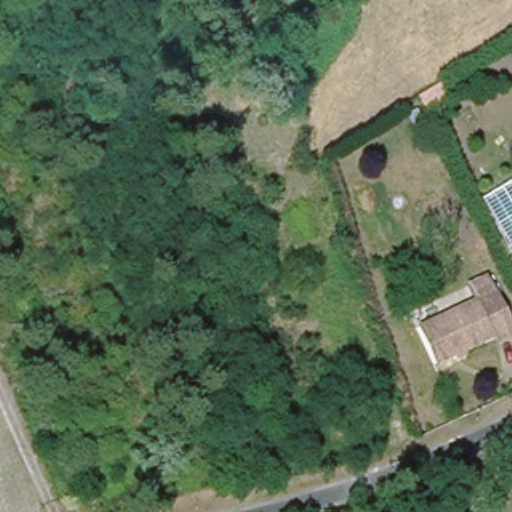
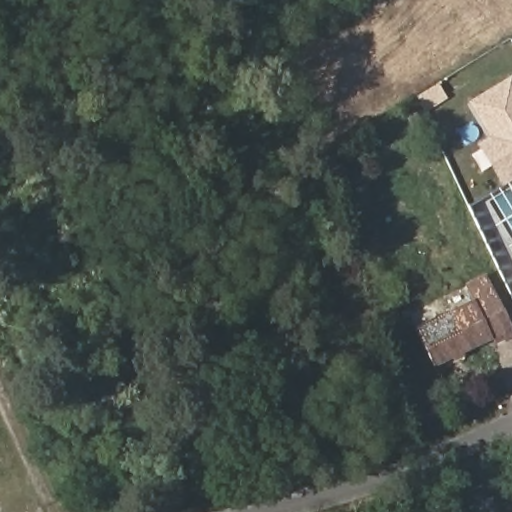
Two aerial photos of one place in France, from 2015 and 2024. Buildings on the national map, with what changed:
new [(509,75),(512,79),(512,192),(506,182),(500,186),(474,142),(487,135),(468,101),(509,75)]
new [(448,97),(425,113),(414,97),(437,81),(448,97)]
new [(507,245),(512,242),(512,253),(507,245)]
unchanged [(418,321),(470,292),(462,277),(485,266),(512,315),(512,336),(492,346),(487,337),(434,359),(418,321)]
new [(510,295),(512,294),(512,299),(510,295)]

